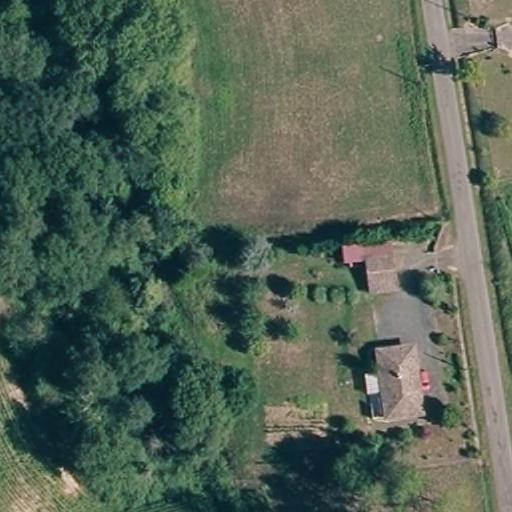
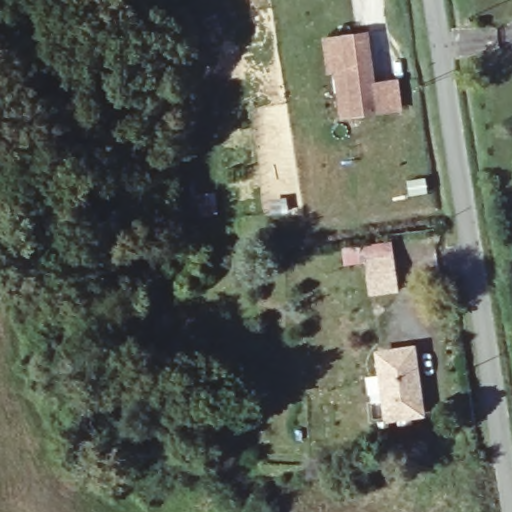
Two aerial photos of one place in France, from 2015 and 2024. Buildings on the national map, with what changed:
new [(403,111),(376,115),(340,119),(335,73),(326,74),(322,38),(369,31),(375,81),(399,80),(403,111)]
unchanged [(377,250),(393,249),(396,280),(379,282),(377,250)]
unchanged [(423,412),(385,416),(378,353),(416,349),(423,412)]

